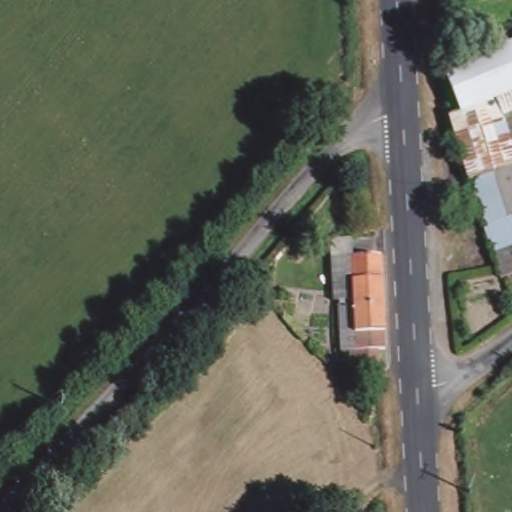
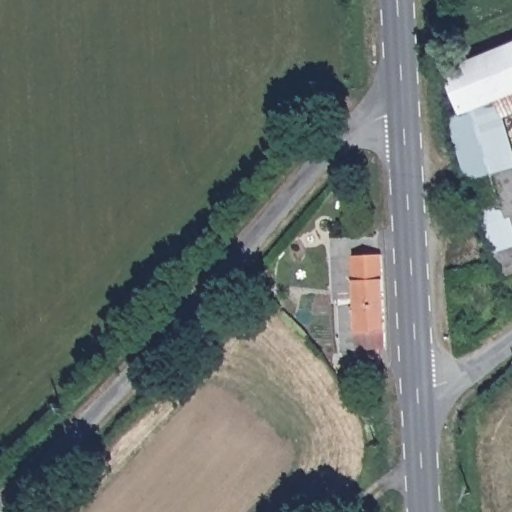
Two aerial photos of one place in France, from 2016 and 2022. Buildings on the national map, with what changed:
unchanged [(497,115),(512,159),(512,170),(467,186),(444,117),(453,114),(442,77),(512,45),(512,89),(491,97),(497,115)]
unchanged [(512,110),(497,115),(491,97),(512,89),(512,110)]
unchanged [(512,290),(507,276),(500,278),(467,186),(512,170),(512,290)]
unchanged [(337,307),(335,262),(333,242),(353,241),(354,261),(356,306),(340,307),(337,307)]
unchanged [(358,368),(357,355),(343,356),(340,307),(356,306),(354,261),(382,260),(389,351),(385,352),(383,370),(376,370),(358,368)]

